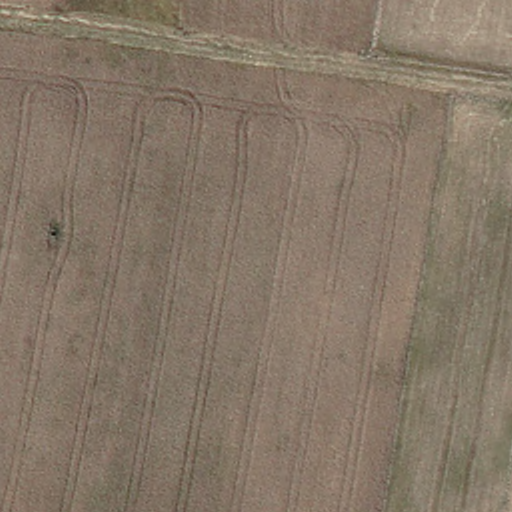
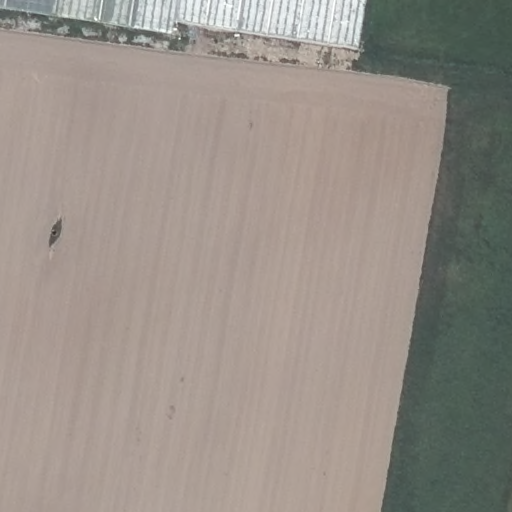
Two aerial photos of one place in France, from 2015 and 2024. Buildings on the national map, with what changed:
new [(0,11),(0,0),(366,0),(358,48),(175,22),(171,39),(0,11)]

